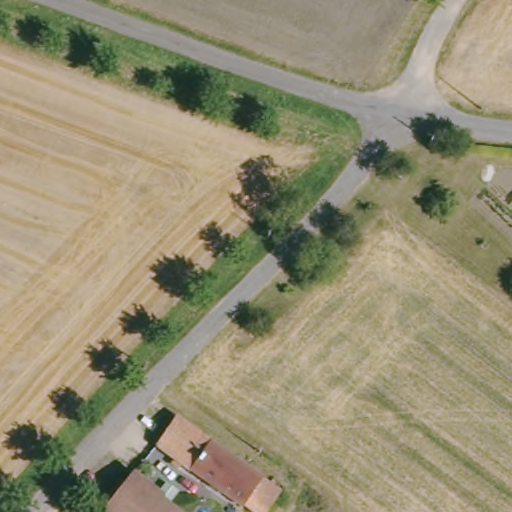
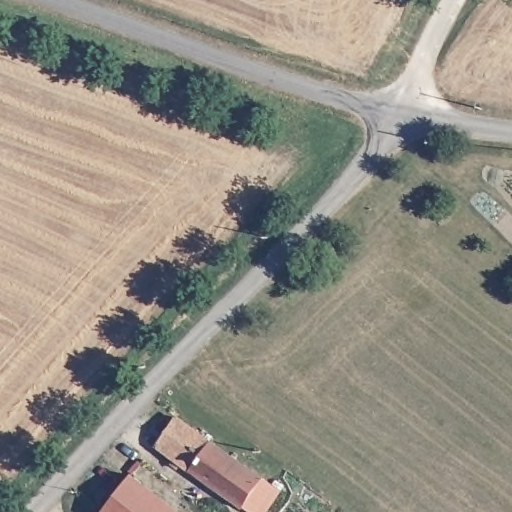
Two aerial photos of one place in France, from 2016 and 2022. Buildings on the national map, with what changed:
unchanged [(186,469),(152,446),(172,418),(206,441),(186,469)]
unchanged [(276,490),(261,512),(246,512),(186,469),(206,441),(276,490)]
unchanged [(174,512),(98,512),(125,475),(174,512)]

